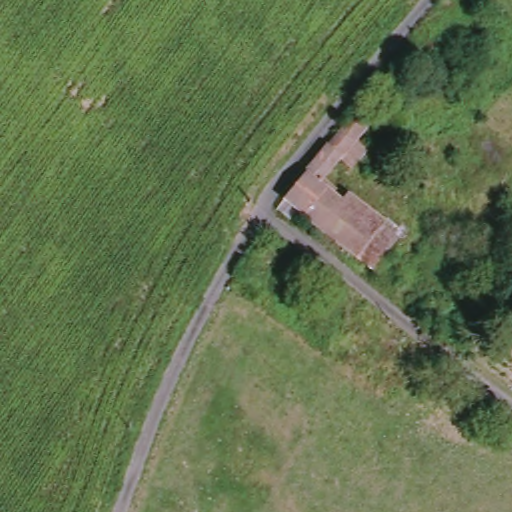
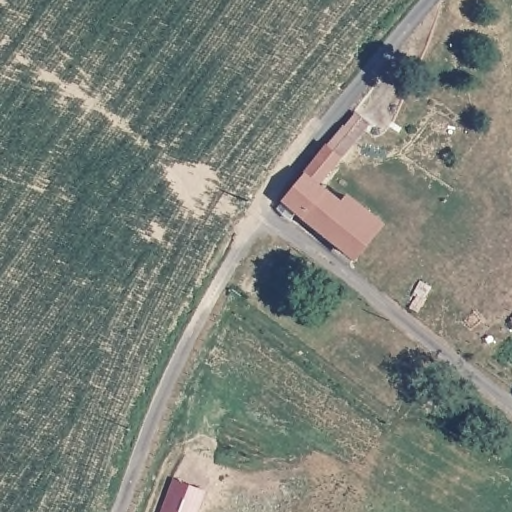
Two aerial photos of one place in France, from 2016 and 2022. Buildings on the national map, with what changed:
unchanged [(340,203),(345,197),(384,226),(356,262),(282,201),(325,141),(339,122),(360,141),(347,160),(340,155),(320,186),(340,203)]
new [(206,492),(199,512),(162,512),(173,480),(206,492)]

